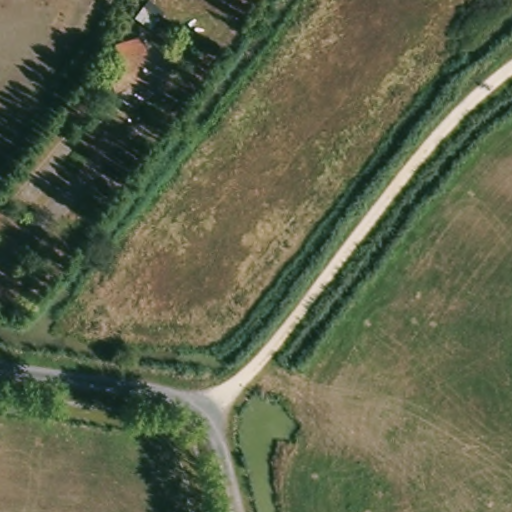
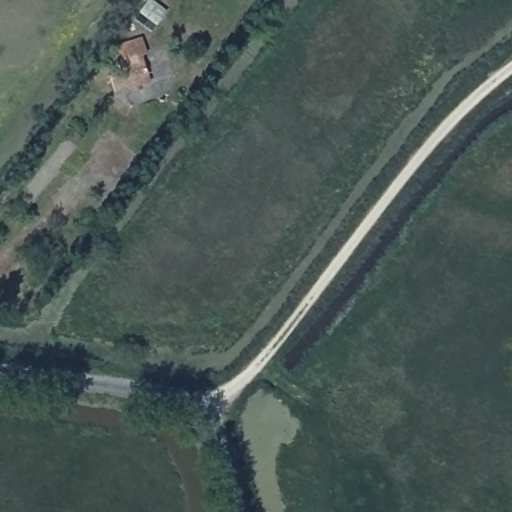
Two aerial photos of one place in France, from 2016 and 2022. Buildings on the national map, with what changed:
unchanged [(156,88),(119,100),(106,59),(120,55),(118,48),(143,40),(156,88)]

